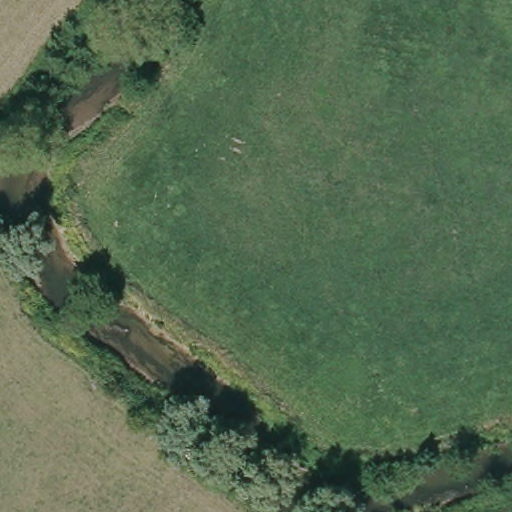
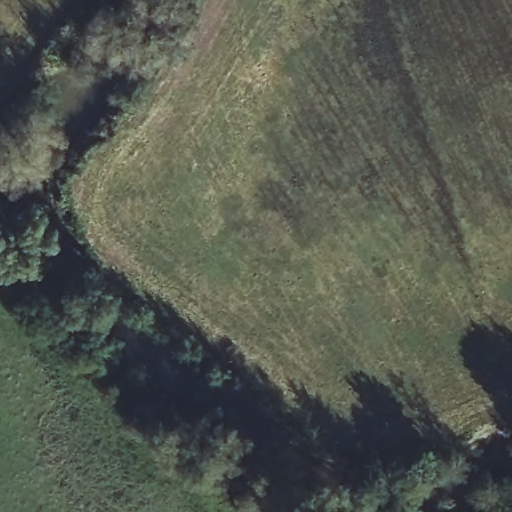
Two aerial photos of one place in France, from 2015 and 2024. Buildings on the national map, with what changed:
[]

